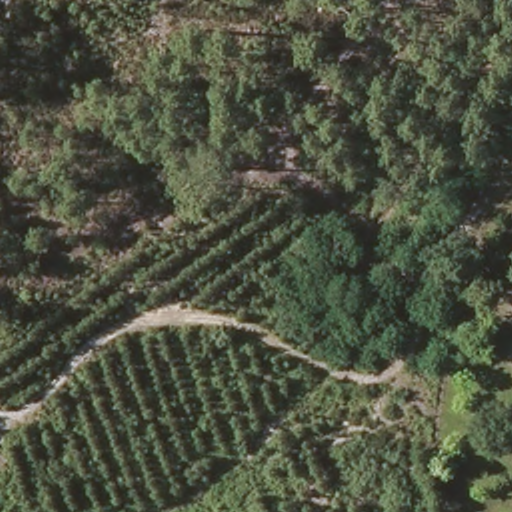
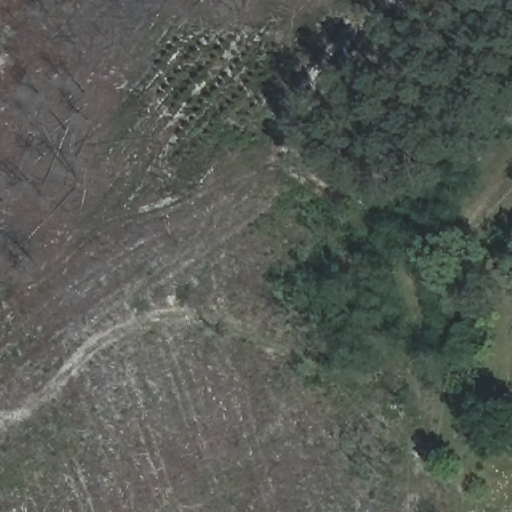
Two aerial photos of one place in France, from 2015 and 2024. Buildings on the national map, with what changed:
[]

